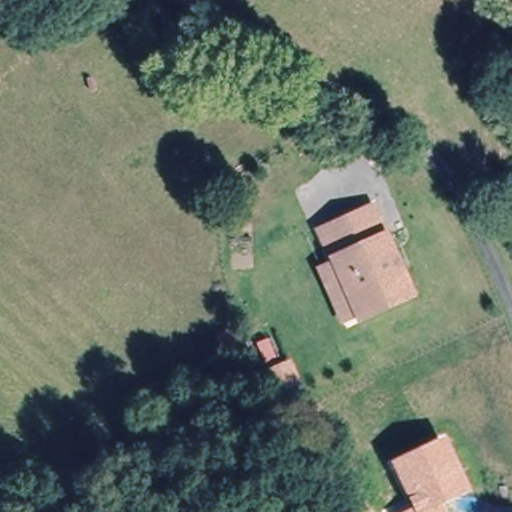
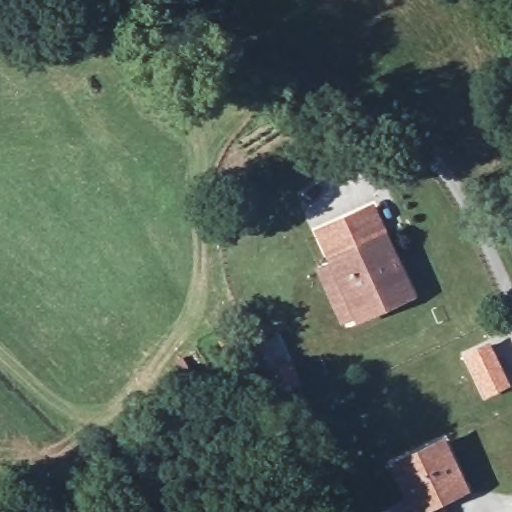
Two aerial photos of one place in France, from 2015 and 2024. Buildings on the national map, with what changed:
unchanged [(365,313),(351,319),(327,265),(340,259),(326,228),(377,205),(416,289),(397,298),(383,304),(365,313)]
new [(511,385),(485,397),(463,353),(490,341),(511,385)]
unchanged [(276,371),(287,391),(267,401),(258,405),(249,385),(257,381),(276,371)]
unchanged [(470,490),(442,503),(446,512),(400,512),(410,507),(388,462),(444,436),(470,490)]

